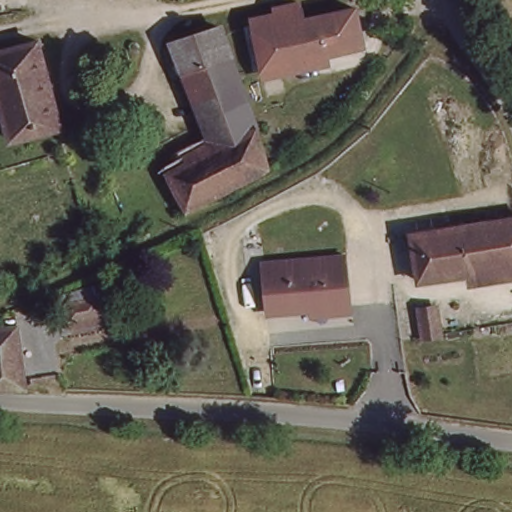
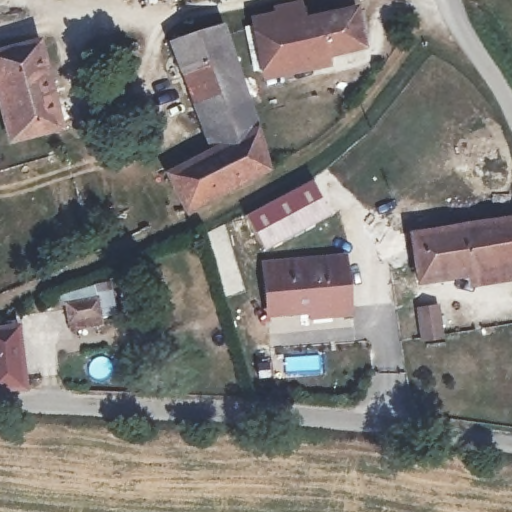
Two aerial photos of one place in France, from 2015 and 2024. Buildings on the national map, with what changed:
unchanged [(278,19),(276,12),(300,9),(303,24),(380,10),(389,39),(363,44),(361,57),(259,75),(251,24),(278,19)]
unchanged [(182,207),(165,167),(203,151),(170,46),(215,33),(261,173),(182,207)]
unchanged [(0,53),(38,45),(60,135),(10,145),(0,103),(0,53)]
new [(263,251),(244,216),(310,180),(331,215),(263,251)]
unchanged [(418,284),(414,238),(512,224),(512,271),(418,284)]
unchanged [(311,313),(311,308),(291,309),(291,302),(266,303),(263,261),(303,259),(303,266),(346,263),(349,305),(349,311),(311,313)]
unchanged [(74,328),(70,310),(98,304),(105,331),(95,332),(76,337),(74,328)]
unchanged [(421,307),(436,306),(439,332),(423,334),(421,307)]
unchanged [(0,386),(0,331),(30,330),(28,387),(0,386)]

